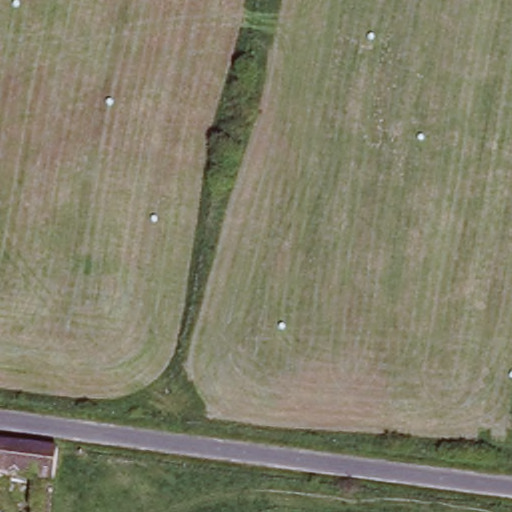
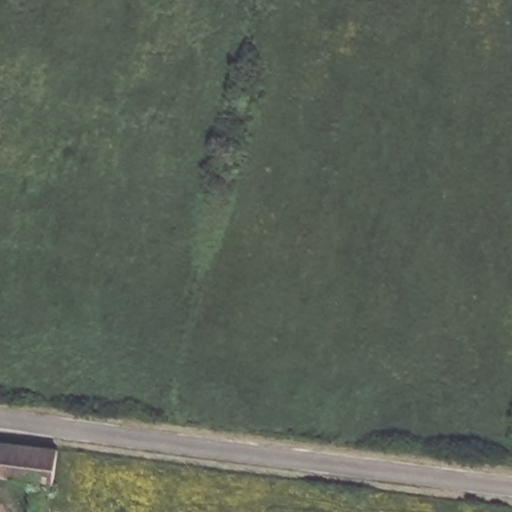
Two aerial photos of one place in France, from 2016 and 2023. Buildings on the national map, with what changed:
unchanged [(54,482),(0,475),(0,440),(57,447),(54,482)]
unchanged [(51,512),(31,512),(34,485),(54,486),(51,512)]

